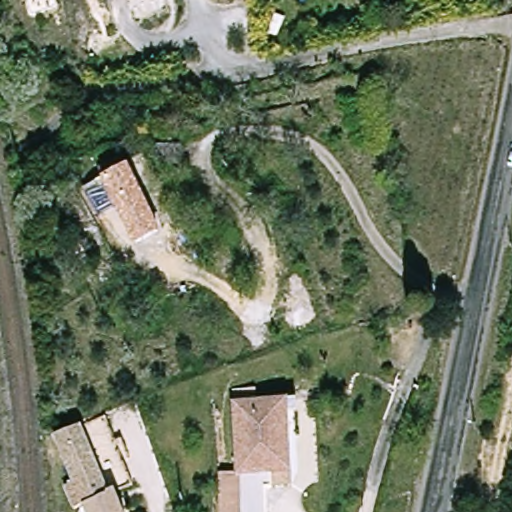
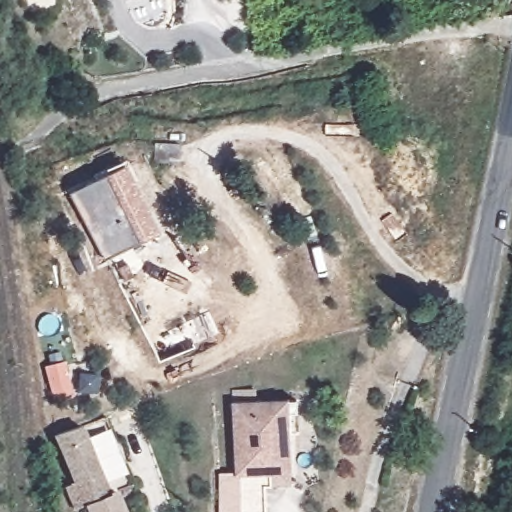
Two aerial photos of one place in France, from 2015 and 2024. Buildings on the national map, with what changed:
unchanged [(117,205),(103,214),(122,248),(106,258),(72,195),(104,176),(99,161),(122,147),(161,233),(168,248),(145,258),(117,205)]
unchanged [(189,165),(187,185),(163,184),(164,163),(189,165)]
unchanged [(238,468),(232,398),(294,395),(298,473),(273,474),(276,488),(270,488),(271,512),(220,512),(220,468),(238,468)]
unchanged [(77,400),(105,466),(110,463),(124,493),(91,508),(80,479),(69,483),(60,461),(70,457),(52,408),(77,400)]

